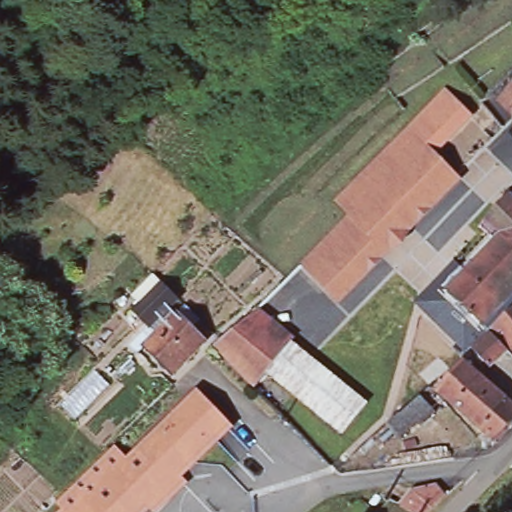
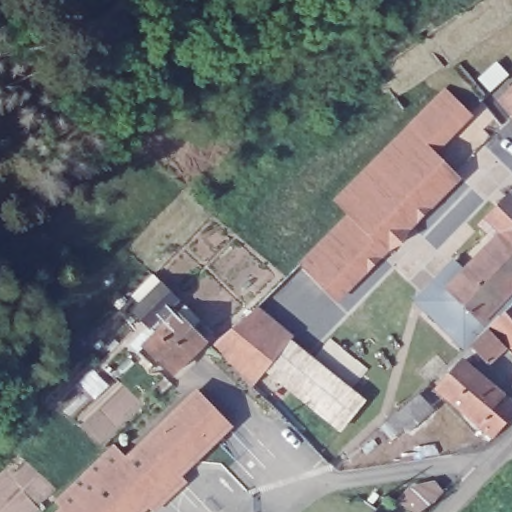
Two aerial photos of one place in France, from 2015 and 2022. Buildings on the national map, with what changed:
unchanged [(512,84),(512,113),(497,99),(512,84)]
unchanged [(347,219),(332,203),(447,86),(475,115),(438,155),(462,181),(338,303),(300,264),(347,219)]
unchanged [(512,184),(512,285),(512,286),(481,317),(473,311),(460,325),(442,308),(457,293),(445,282),(493,233),(478,218),(512,184)]
unchanged [(177,368),(148,339),(170,318),(163,312),(154,320),(138,303),(166,276),(183,293),(205,315),(195,323),(210,336),(177,368)]
unchanged [(512,341),(490,319),(512,300),(512,341)]
unchanged [(255,308),(291,337),(289,339),(292,342),(268,370),(266,367),(253,383),(216,345),(255,308)]
unchanged [(488,323),(505,341),(487,357),(470,340),(488,323)]
unchanged [(292,342),(363,400),(340,428),(268,370),(292,342)]
unchanged [(512,403),(512,417),(493,436),(438,387),(462,360),(512,403)]
unchanged [(58,509),(52,503),(116,443),(126,455),(197,390),(233,430),(183,476),(188,482),(156,512),(148,512),(147,511),(146,512),(55,512),(58,509)]
unchanged [(427,510),(392,492),(395,489),(405,495),(417,481),(438,473),(448,487),(427,510)]
unchanged [(380,486),(385,490),(377,498),(372,494),(380,486)]

